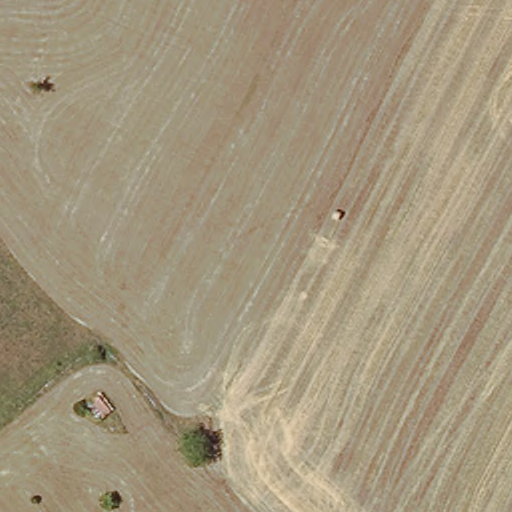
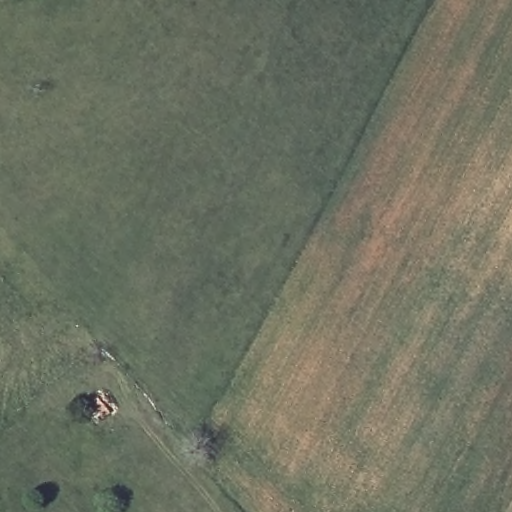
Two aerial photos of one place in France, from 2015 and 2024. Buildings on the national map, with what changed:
[]

